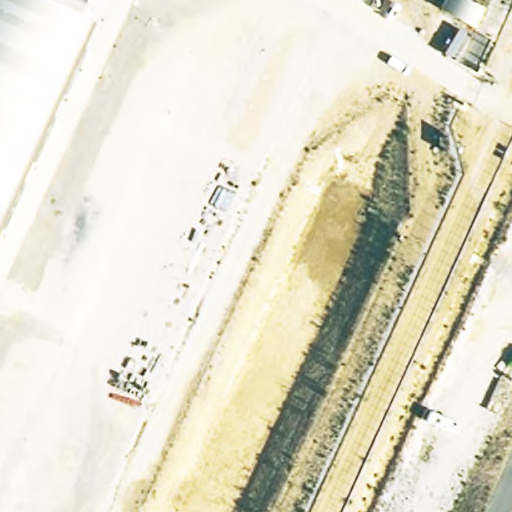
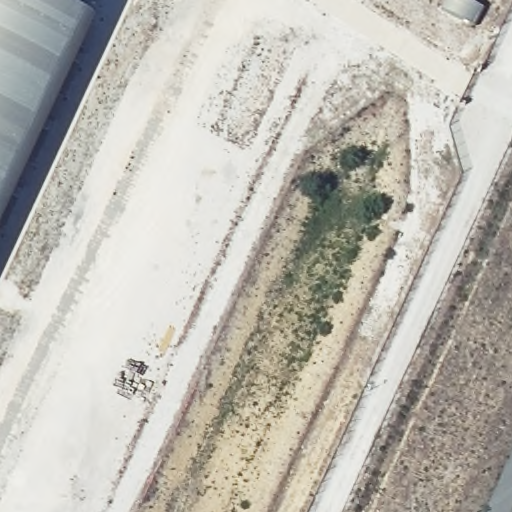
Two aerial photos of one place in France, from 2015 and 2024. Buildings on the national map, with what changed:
unchanged [(44,0),(95,22),(0,227),(0,0),(44,0)]

